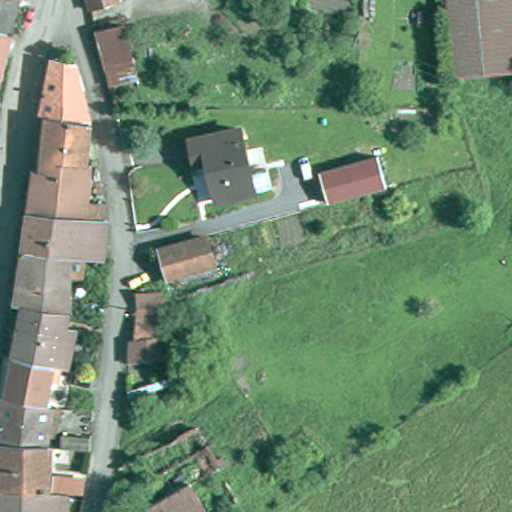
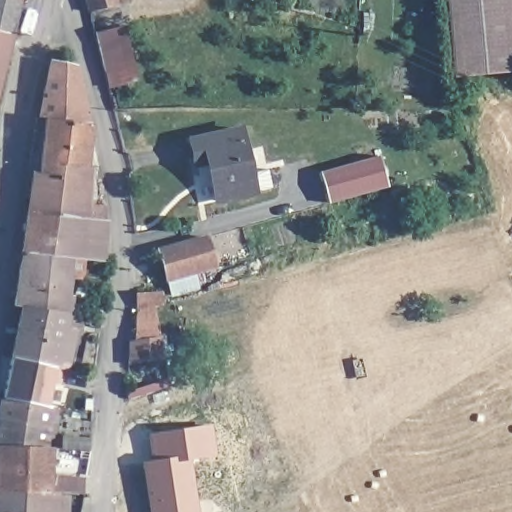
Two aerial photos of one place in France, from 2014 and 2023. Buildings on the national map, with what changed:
unchanged [(0,0),(14,0),(6,32),(0,30),(0,0)]
unchanged [(88,0),(107,0),(88,4),(88,0)]
unchanged [(447,77),(443,0),(512,0),(512,73),(447,77)]
unchanged [(130,61),(101,67),(93,27),(121,22),(130,61)]
unchanged [(0,56),(0,30),(6,32),(0,56)]
unchanged [(33,119),(42,76),(45,64),(53,65),(67,67),(74,86),(80,106),(79,124),(40,120),(33,119)]
unchanged [(85,125),(78,164),(49,160),(48,172),(32,170),(40,120),(79,124),(85,125)]
unchanged [(213,169),(218,167),(216,157),(199,160),(196,137),(246,127),(254,172),(271,169),(275,189),(219,200),(213,169)]
unchanged [(330,200),(329,195),(322,170),(381,154),(389,182),(389,184),(330,200)]
unchanged [(18,217),(26,169),(32,170),(48,172),(49,160),(78,164),(85,165),(82,207),(80,223),(18,217)]
unchanged [(13,254),(18,217),(80,223),(100,225),(94,264),(64,260),(13,254)]
unchanged [(208,263),(159,274),(153,245),(203,234),(208,263)]
unchanged [(14,311),(5,309),(13,254),(64,260),(56,316),(14,311)]
unchanged [(136,303),(159,301),(164,328),(169,351),(131,351),(130,330),(136,329),(136,303)]
unchanged [(56,316),(58,317),(56,328),(67,331),(58,373),(51,372),(4,361),(14,311),(56,316)]
unchanged [(0,378),(4,361),(51,372),(48,387),(44,386),(39,410),(0,402),(0,378)]
unchanged [(0,402),(39,410),(44,411),(38,452),(0,448),(0,402)]
new [(144,463),(153,462),(149,435),(209,426),(213,454),(188,458),(196,512),(151,512),(144,463)]
unchanged [(0,448),(38,452),(46,453),(44,482),(69,484),(68,502),(58,500),(0,493),(0,448)]
demolished [(206,512),(137,512),(191,484),(206,512)]
unchanged [(0,493),(58,500),(57,512),(0,512),(0,493)]

